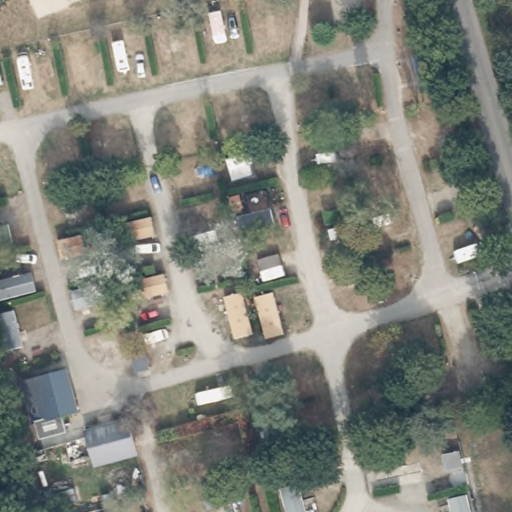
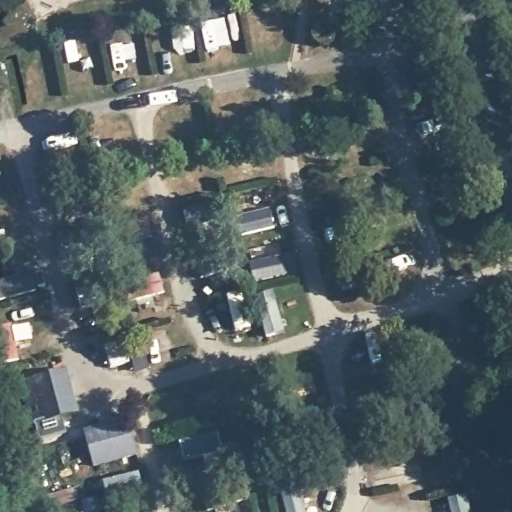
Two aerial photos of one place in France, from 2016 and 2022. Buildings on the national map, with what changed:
unchanged [(2,85),(0,85),(0,76),(2,85)]
unchanged [(156,238),(61,257),(57,241),(152,218),(156,238)]
unchanged [(12,243),(0,245),(0,230),(8,228),(12,243)]
unchanged [(168,294),(77,309),(72,290),(162,273),(168,294)]
unchanged [(34,291),(0,300),(0,283),(29,275),(34,291)]
unchanged [(275,292),(284,333),(265,339),(255,298),(275,292)]
unchanged [(242,293),(254,335),(235,340),(223,298),(242,293)]
unchanged [(23,347),(2,349),(0,340),(0,317),(16,313),(23,347)]
unchanged [(71,370),(81,410),(37,421),(27,381),(71,370)]
unchanged [(132,420),(141,455),(99,465),(90,431),(132,420)]
unchanged [(69,435),(71,442),(56,446),(54,439),(69,435)]
unchanged [(297,477),(307,512),(285,512),(278,481),(297,477)]
unchanged [(473,512),(449,512),(447,500),(468,494),(473,512)]

